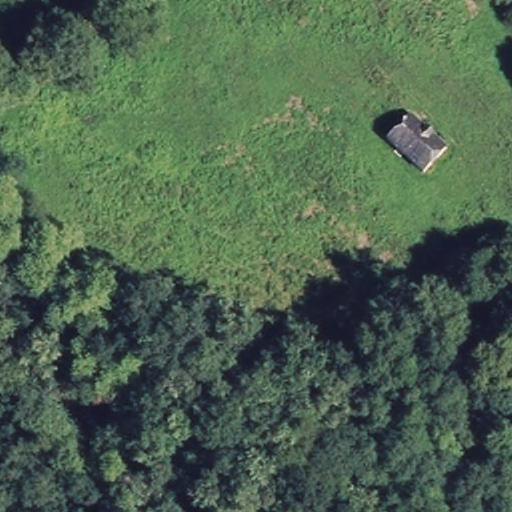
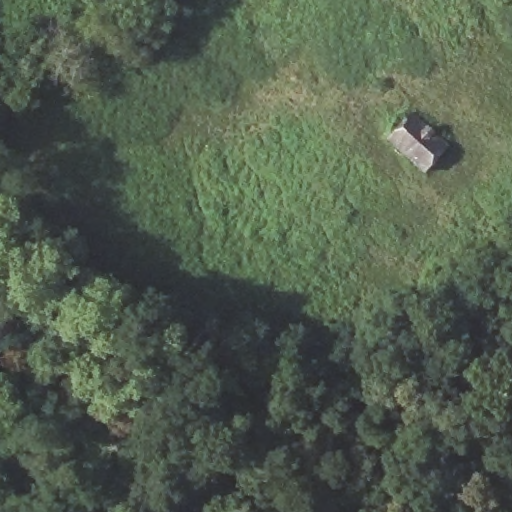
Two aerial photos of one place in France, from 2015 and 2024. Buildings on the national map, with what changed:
unchanged [(405,115),(444,149),(420,176),(380,143),(405,115)]

